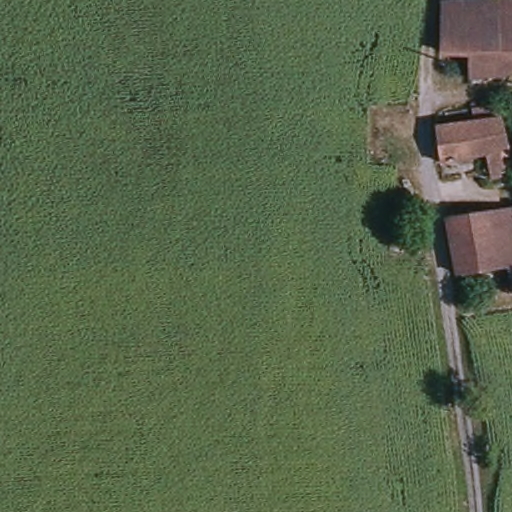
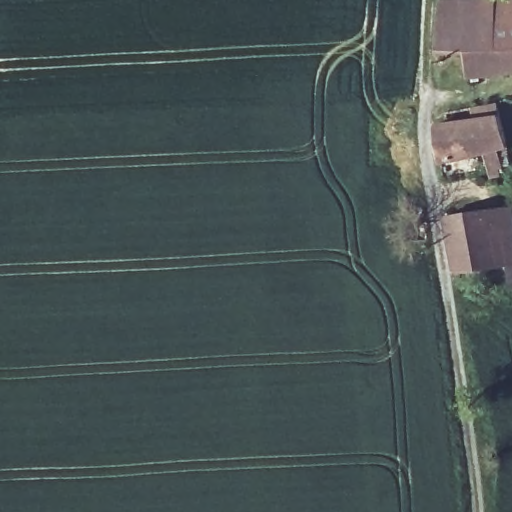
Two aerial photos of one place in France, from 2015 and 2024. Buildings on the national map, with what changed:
unchanged [(447,1),(495,0),(499,46),(469,49),(444,50),(447,1)]
unchanged [(499,46),(495,0),(505,0),(512,0),(512,74),(471,79),(469,49),(499,46)]
unchanged [(501,106),(507,164),(496,171),(498,180),(489,181),(488,157),(443,158),(442,127),(474,127),(473,108),(501,106)]
unchanged [(504,289),(504,282),(503,270),(473,273),(459,275),(452,217),(494,212),(512,210),(512,289),(504,289)]

